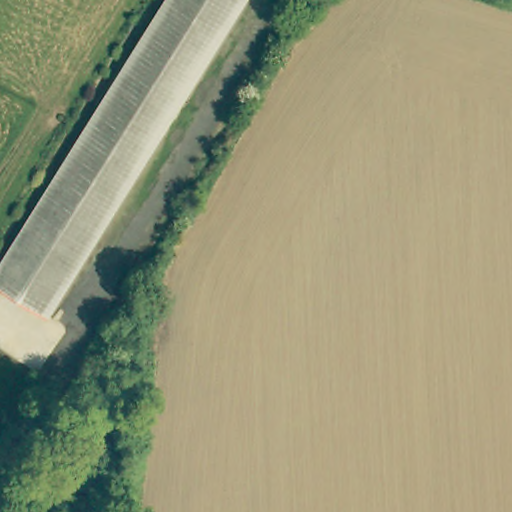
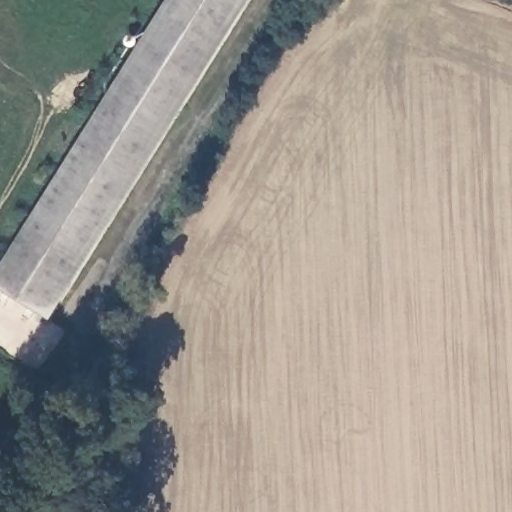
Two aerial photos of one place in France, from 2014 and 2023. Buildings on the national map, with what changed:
unchanged [(0,285),(0,267),(174,0),(245,0),(43,312),(0,285)]

